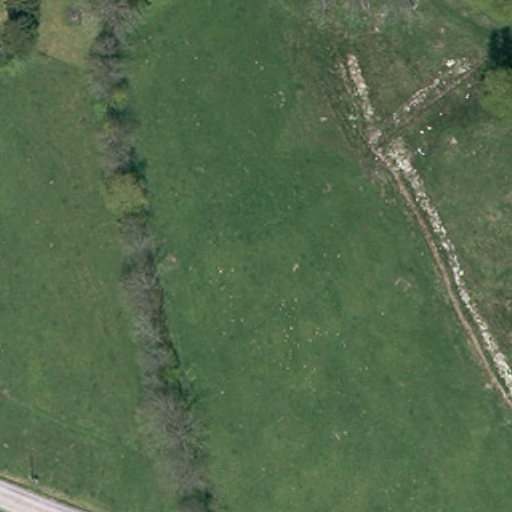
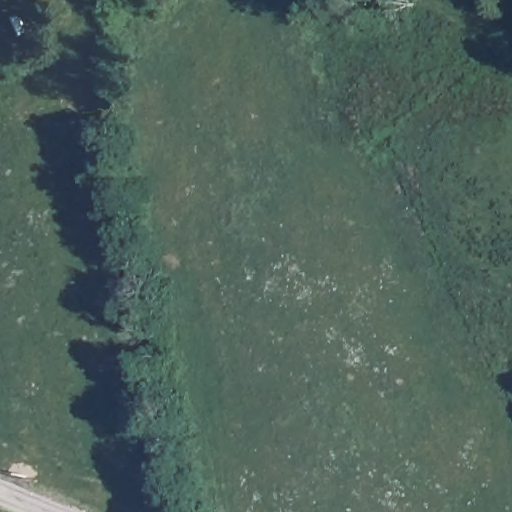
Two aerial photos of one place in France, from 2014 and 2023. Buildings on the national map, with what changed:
[]

